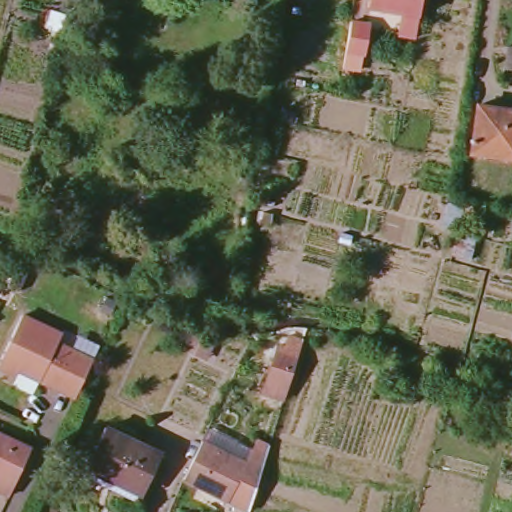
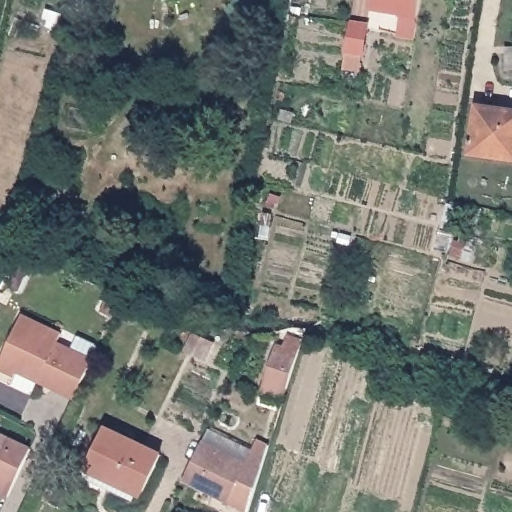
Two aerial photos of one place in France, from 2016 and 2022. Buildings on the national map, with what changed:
unchanged [(397,36),(400,15),(367,11),(369,0),(421,0),(418,17),(415,41),(397,36)]
unchanged [(367,28),(363,58),(346,55),(350,25),(367,28)]
unchanged [(505,47),(512,47),(512,69),(505,70),(505,47)]
unchanged [(471,152),(478,106),(512,110),(512,158),(471,152)]
unchanged [(451,202),(473,207),(467,231),(445,227),(451,202)]
unchanged [(457,240),(468,240),(472,225),(480,226),(473,262),(450,258),(457,240)]
unchanged [(0,296),(0,267),(12,273),(0,296)]
unchanged [(17,376),(0,368),(0,366),(23,315),(63,333),(60,343),(94,359),(77,396),(54,386),(42,380),(20,371),(17,376)]
unchanged [(283,403),(262,397),(277,350),(283,352),(287,340),(302,344),(283,403)]
unchanged [(207,427),(252,449),(266,455),(248,511),(182,480),(200,441),(207,427)]
unchanged [(142,491),(122,481),(109,475),(107,480),(85,470),(105,428),(139,445),(160,455),(142,491)]
unchanged [(0,492),(0,433),(32,447),(9,497),(0,492)]

